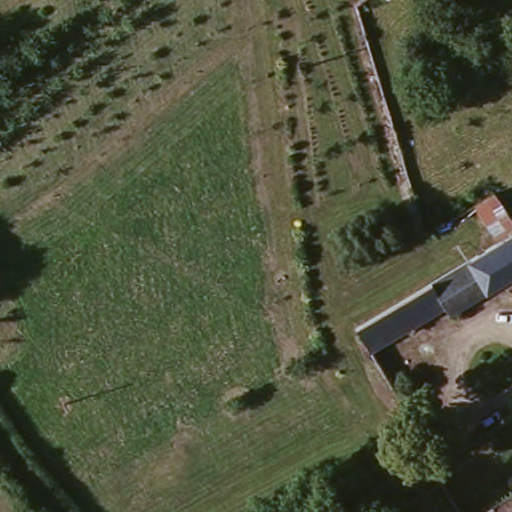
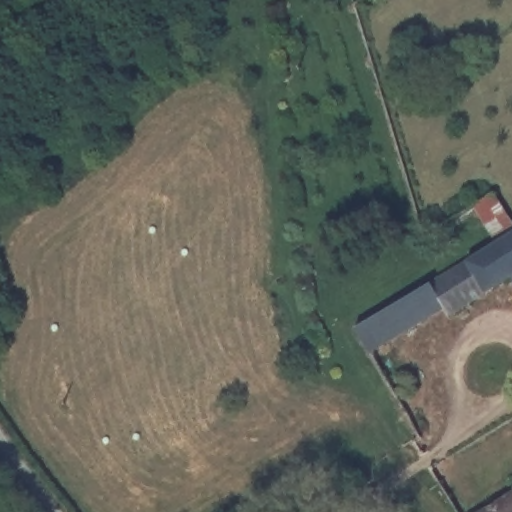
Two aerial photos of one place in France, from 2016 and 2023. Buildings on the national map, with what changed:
unchanged [(431,283),(509,232),(512,236),(512,283),(508,278),(446,318),(440,311),(371,358),(356,336),(431,283)]
unchanged [(510,491),(512,489),(512,512),(489,512),(511,498),(510,491)]

